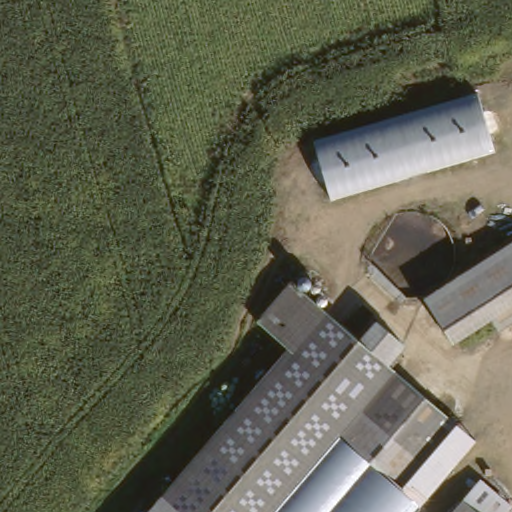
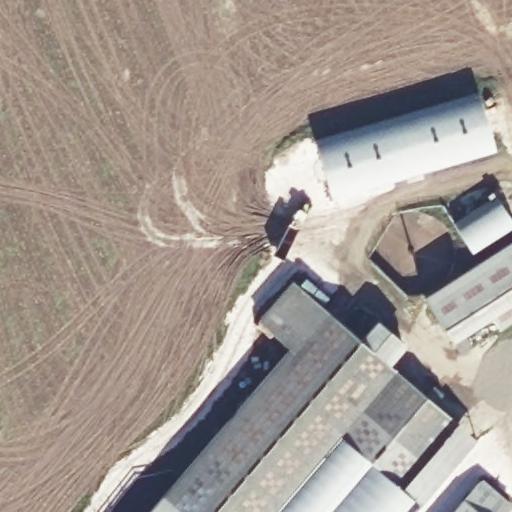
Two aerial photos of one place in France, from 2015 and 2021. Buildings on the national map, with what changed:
unchanged [(314,140),(477,91),(495,152),(330,200),(314,140)]
new [(512,229),(473,252),(455,225),(496,199),(512,221),(512,229)]
unchanged [(512,321),(503,310),(467,339),(436,298),(512,239),(512,321)]
unchanged [(285,347),(279,342),(257,323),(290,285),(351,336),(359,342),(375,323),(401,345),(385,365),(457,426),(424,465),(354,405),(263,512),(142,512),(285,347)]
unchanged [(475,442),(414,512),(263,512),(354,405),(424,465),(457,426),(475,442)]
unchanged [(486,480),(512,503),(512,512),(467,512),(486,480)]
unchanged [(466,512),(446,512),(453,502),(466,512)]

